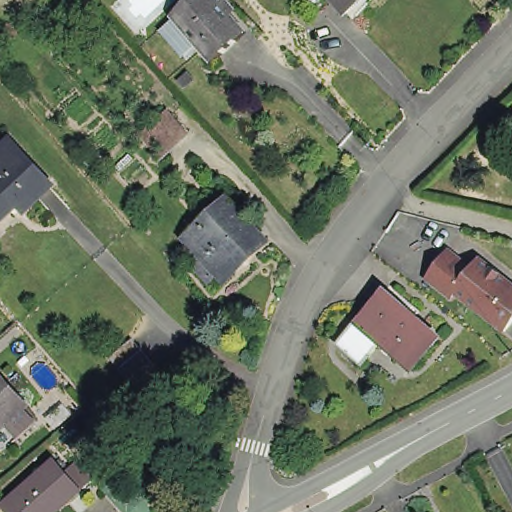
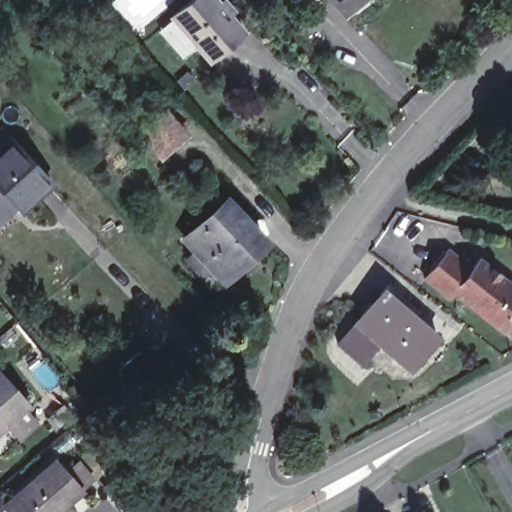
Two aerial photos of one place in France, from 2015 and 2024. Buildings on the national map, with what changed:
unchanged [(183,0),(225,0),(226,1),(226,10),(241,29),(208,57),(170,11),(183,0)]
unchanged [(345,0),(360,0),(352,7),(345,0)]
unchanged [(145,134),(171,110),(187,127),(161,152),(145,134)]
unchanged [(15,144),(53,185),(25,211),(18,203),(0,219),(0,142),(7,135),(15,144)]
unchanged [(187,231),(228,194),(261,232),(221,268),(217,264),(207,273),(185,249),(196,240),(187,231)]
unchanged [(478,256),(512,282),(512,315),(503,327),(454,288),(450,293),(425,274),(447,246),(471,265),(478,256)]
unchanged [(385,287),(439,334),(412,365),(380,337),(361,358),(340,340),(358,318),(385,287)]
unchanged [(125,383),(121,378),(105,358),(128,340),(147,363),(148,365),(125,383)]
unchanged [(0,370),(25,398),(21,402),(34,417),(17,432),(5,417),(0,421),(0,370)]
unchanged [(58,458),(69,470),(80,461),(93,476),(82,485),(83,487),(56,512),(12,512),(6,506),(58,458)]

